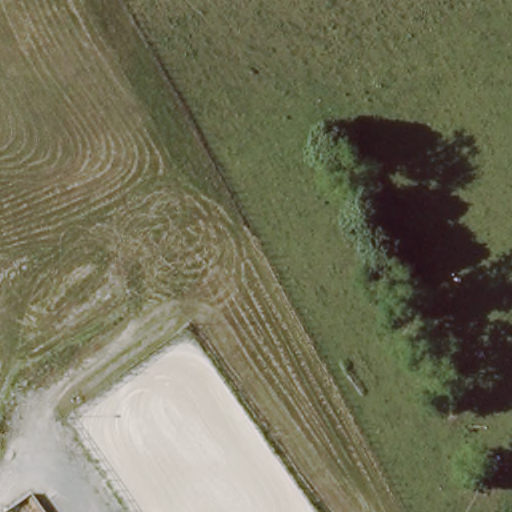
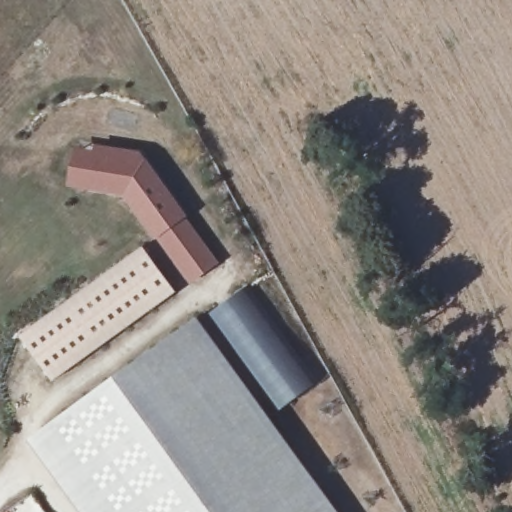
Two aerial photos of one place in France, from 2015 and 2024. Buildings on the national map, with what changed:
new [(73,149),(93,152),(94,145),(142,153),(188,217),(221,262),(189,285),(155,238),(125,196),(68,186),(73,149)]
new [(20,335),(143,247),(174,292),(53,380),(20,335)]
new [(203,320),(251,285),(319,380),(273,414),(203,320)]
new [(197,317),(337,512),(81,512),(28,439),(197,317)]

